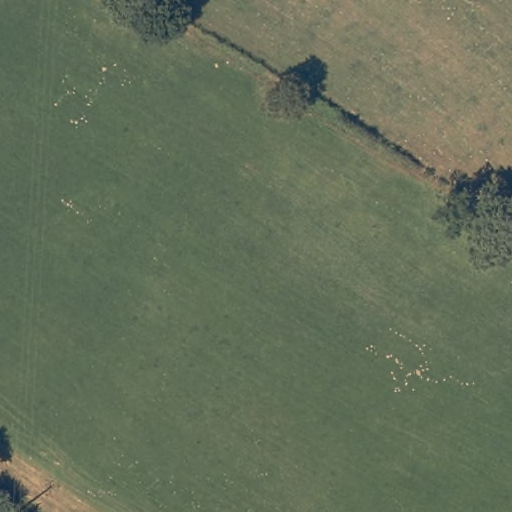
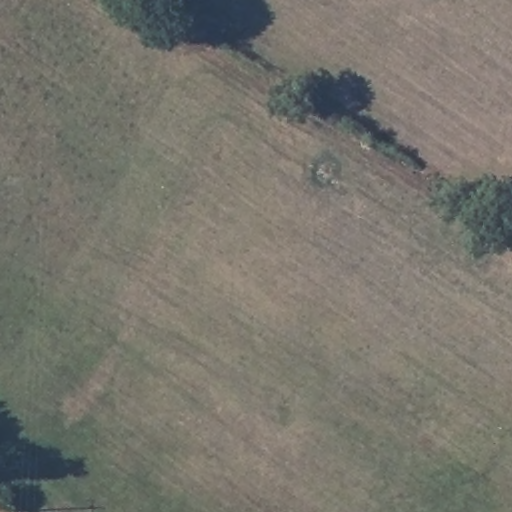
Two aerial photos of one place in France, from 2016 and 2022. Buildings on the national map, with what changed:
[]

